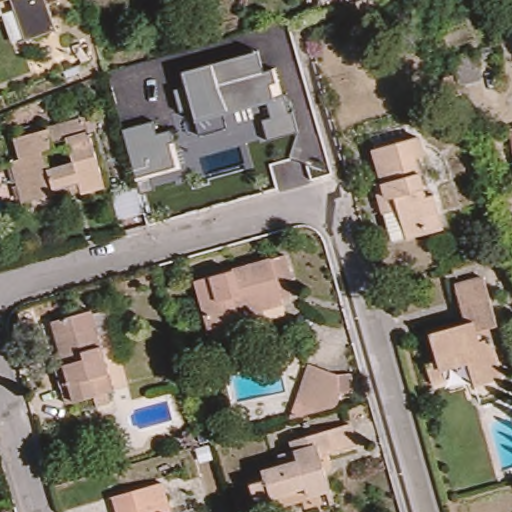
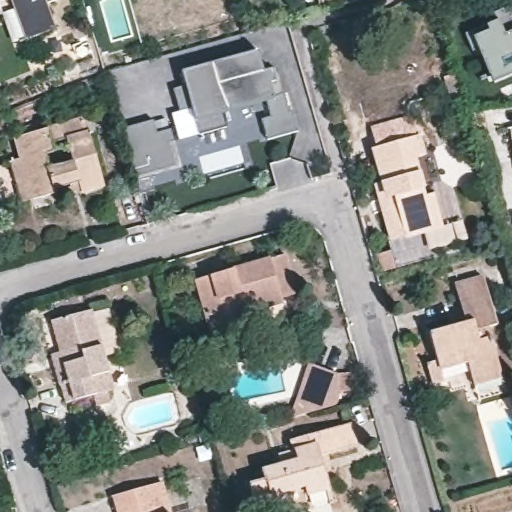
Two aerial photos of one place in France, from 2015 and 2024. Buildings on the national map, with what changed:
unchanged [(27,36),(14,42),(0,10),(0,0),(13,0),(27,36)]
unchanged [(58,24),(27,36),(13,0),(48,0),(58,24)]
new [(485,25),(497,18),(493,11),(512,3),(512,74),(491,82),(470,36),(486,29),(485,25)]
unchanged [(235,40),(239,56),(218,62),(213,46),(235,40)]
unchanged [(180,113),(175,88),(186,84),(183,73),(257,52),(262,69),(273,66),(275,74),(240,84),(241,92),(228,97),(229,104),(196,113),(180,113)]
unchanged [(473,54),(480,80),(457,86),(450,61),(473,54)]
unchanged [(300,131),(245,146),(246,147),(209,158),(196,113),(229,104),(228,97),(241,92),(240,84),(275,74),(281,96),(288,117),(294,115),(300,131)]
unchanged [(122,130),(153,121),(156,134),(171,130),(182,167),(151,176),(154,189),(139,194),(135,179),(122,130)]
unchanged [(37,205),(28,208),(16,168),(26,165),(20,144),(52,135),(89,125),(93,139),(109,192),(86,198),(83,192),(59,200),(37,205)]
unchanged [(391,221),(390,213),(381,185),(388,183),(380,149),(421,137),(427,157),(420,159),(428,197),(438,195),(443,215),(446,226),(432,230),(410,236),(396,240),(391,221)]
unchanged [(242,321),(214,329),(200,281),(289,256),(299,293),(286,297),(287,302),(267,307),(268,313),(242,321)]
unchanged [(430,363),(441,361),(442,362),(433,332),(470,322),(460,286),(488,278),(501,326),(493,328),(507,377),(478,385),(471,361),(444,368),(445,382),(436,385),(430,363)]
unchanged [(65,353),(55,322),(95,311),(118,390),(70,403),(65,387),(56,356),(65,353)]
unchanged [(313,364),(340,376),(342,398),(341,407),(312,415),(295,420),(313,364)]
unchanged [(263,503),(260,483),(273,481),(272,472),(290,467),(287,457),(302,452),(300,441),(358,425),(363,447),(329,456),(339,490),(315,496),(313,492),(285,497),(263,503)]
unchanged [(128,493),(166,483),(174,512),(121,512),(116,497),(128,493)]

